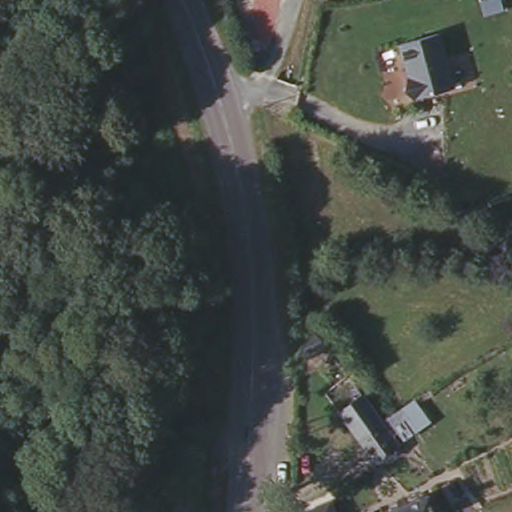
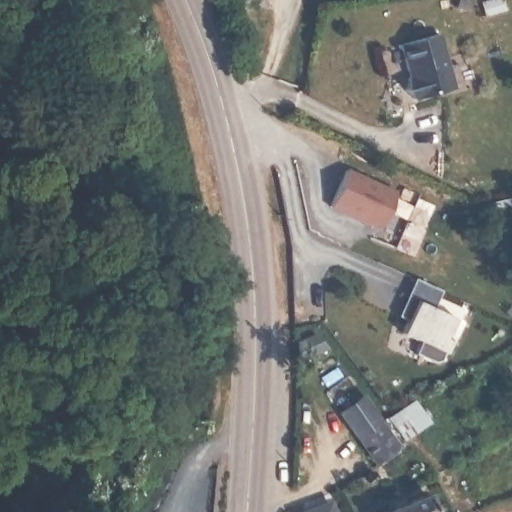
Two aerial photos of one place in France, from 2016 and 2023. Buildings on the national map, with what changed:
unchanged [(414,99),(399,45),(439,33),(453,87),(414,99)]
new [(395,192),(380,229),(328,207),(343,169),(395,192)]
new [(440,290),(431,308),(457,320),(438,365),(412,354),(417,341),(399,333),(406,320),(395,315),(411,277),(440,290)]
unchanged [(327,350),(301,362),(300,342),(318,333),(327,350)]
unchanged [(385,465),(383,463),(365,438),(311,367),(332,350),(385,421),(405,448),(385,465)]
unchanged [(417,398),(434,421),(408,439),(392,415),(390,413),(395,411),(417,398)]
unchanged [(439,512),(386,512),(431,494),(439,512)]
unchanged [(335,511),(335,512),(310,512),(325,506),(335,511)]

